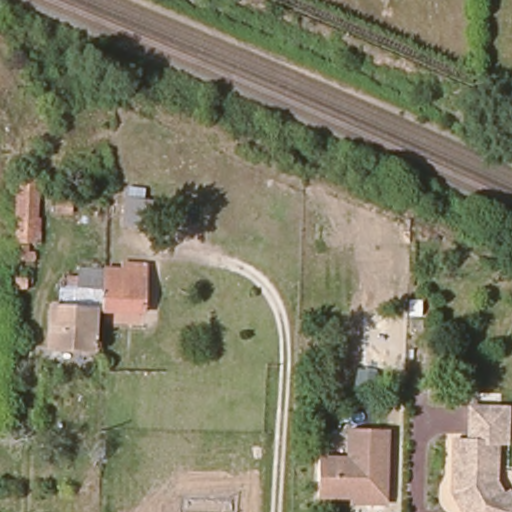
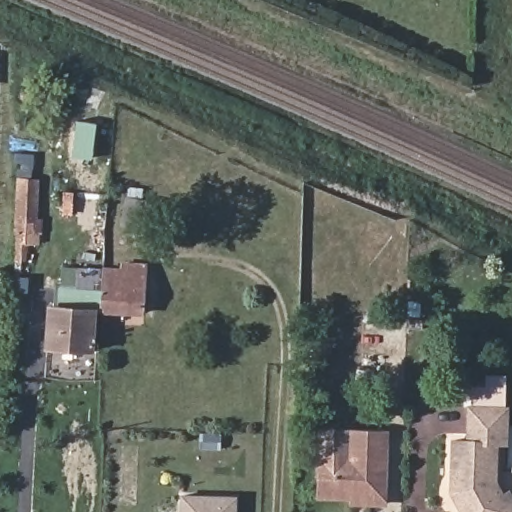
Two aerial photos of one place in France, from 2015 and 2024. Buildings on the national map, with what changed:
unchanged [(26,171),(26,181),(35,183),(34,222),(44,222),(44,234),(28,234),(26,264),(15,263),(16,171),(26,171)]
unchanged [(108,272),(124,273),(123,265),(145,267),(145,271),(142,314),(107,313),(108,293),(108,272)]
unchanged [(24,273),(24,287),(15,287),(15,280),(13,280),(13,273),(24,273)]
unchanged [(62,309),(63,292),(108,293),(107,313),(96,313),(94,345),(100,346),(99,352),(49,348),(49,309),(62,309)]
unchanged [(512,500),(512,512),(460,512),(463,504),(457,493),(446,492),(447,439),(462,439),(462,405),(502,407),(501,441),(489,442),(489,478),(500,499),(508,494),(512,500)]
unchanged [(353,497),(320,496),(322,459),(352,459),(352,429),(389,430),(386,504),(368,503),(353,503),(353,497)]
new [(238,498),(237,512),(184,512),(184,497),(238,498)]

